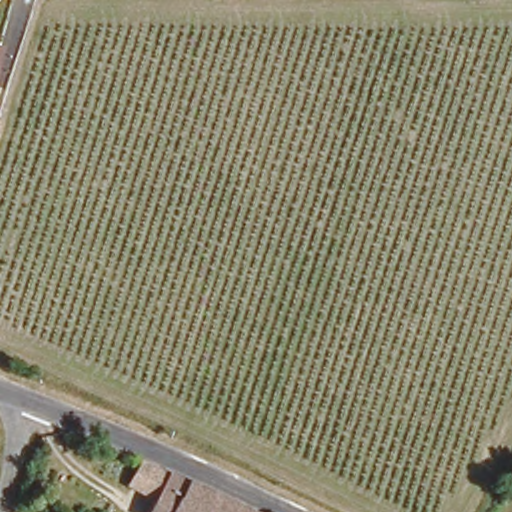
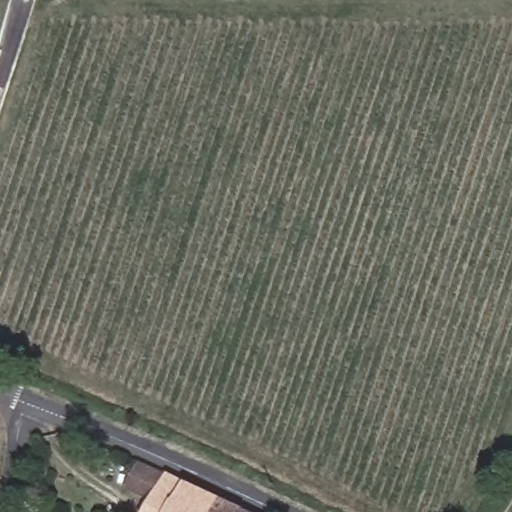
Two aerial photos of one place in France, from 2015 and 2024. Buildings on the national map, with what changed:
unchanged [(215,492),(205,512),(144,512),(166,468),(215,492)]
unchanged [(257,512),(205,512),(215,492),(257,512)]

